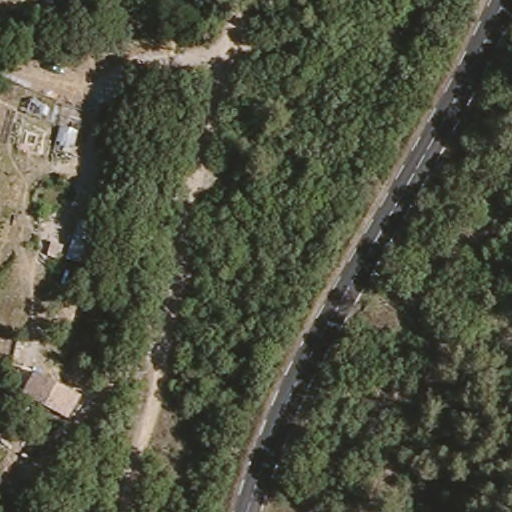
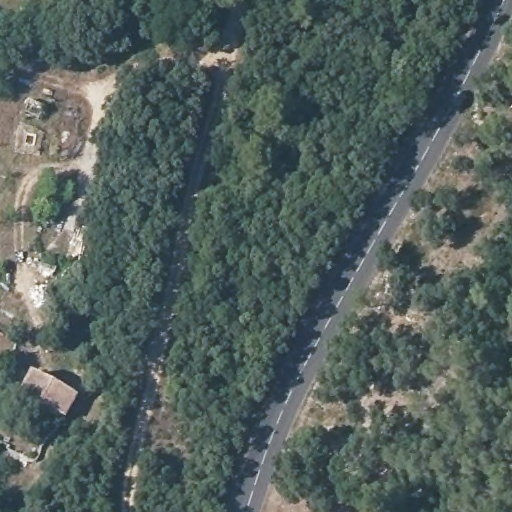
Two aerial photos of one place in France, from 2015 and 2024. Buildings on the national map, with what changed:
unchanged [(35,377),(75,397),(63,420),(25,400),(35,377)]

